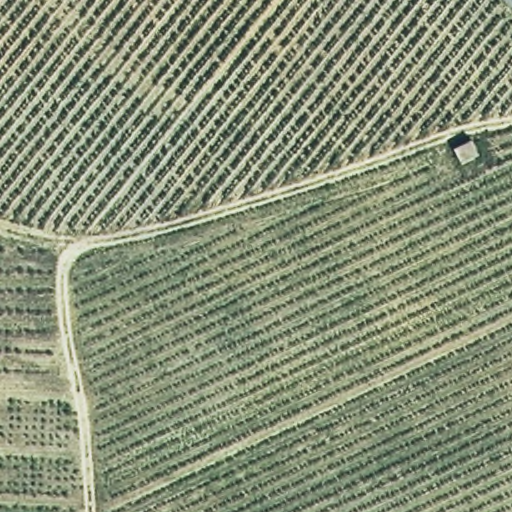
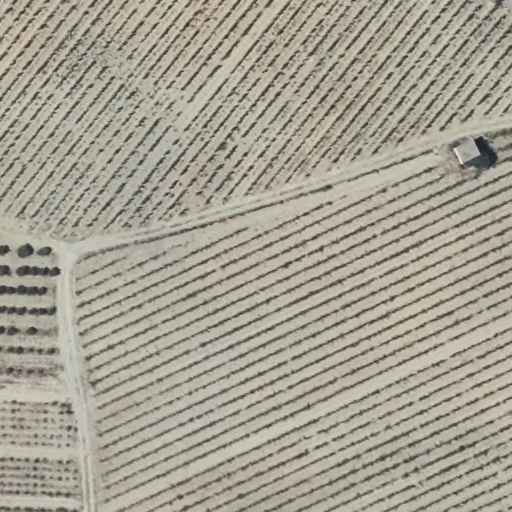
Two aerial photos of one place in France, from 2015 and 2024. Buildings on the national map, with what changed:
unchanged [(472,139),(479,155),(458,162),(451,145),(472,139)]

